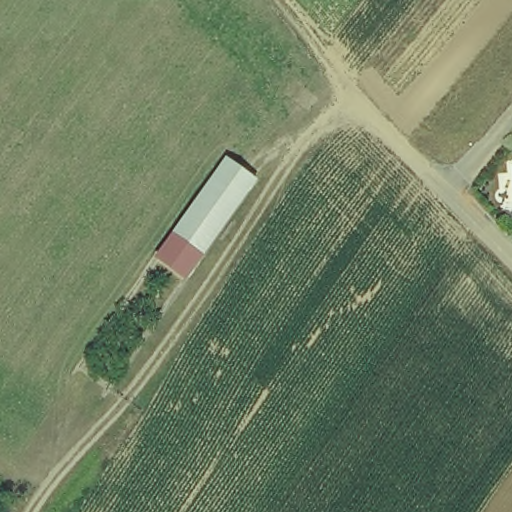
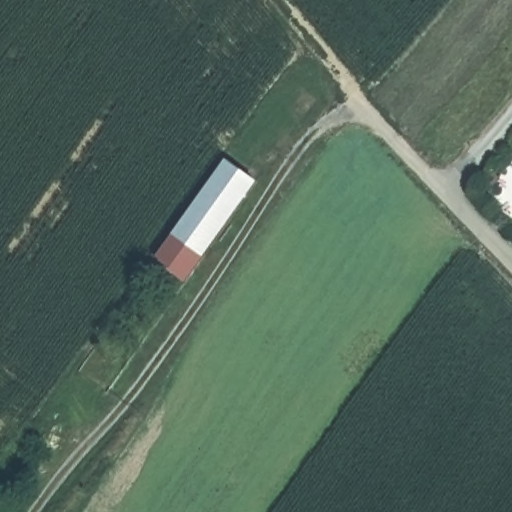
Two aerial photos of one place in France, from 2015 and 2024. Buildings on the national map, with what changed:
unchanged [(260,184),(184,291),(145,262),(224,157),(260,184)]

